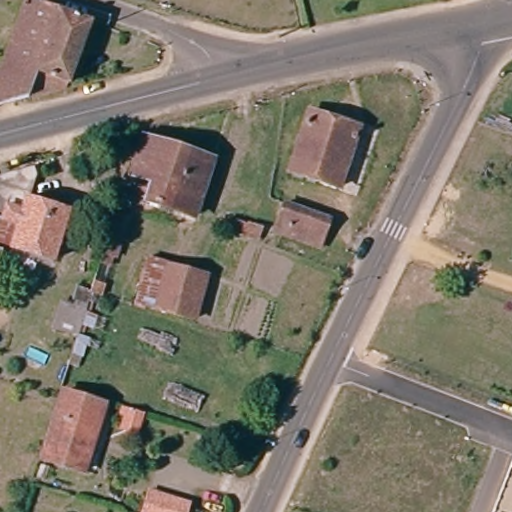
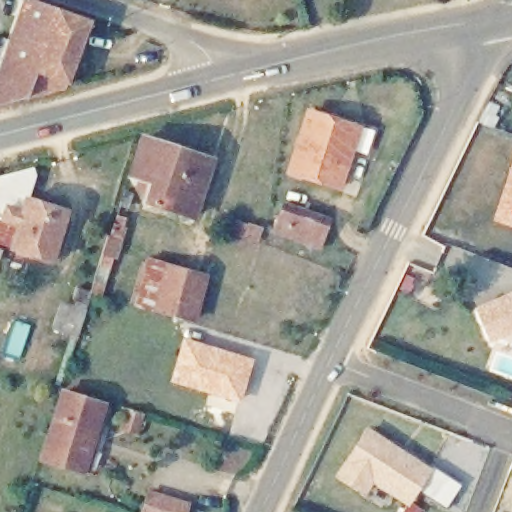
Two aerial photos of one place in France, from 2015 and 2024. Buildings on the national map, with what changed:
unchanged [(45,0),(89,16),(65,79),(60,78),(57,89),(0,104),(0,63),(23,0),(45,0)]
unchanged [(355,122),(332,187),(287,172),(311,109),(355,122)]
unchanged [(210,155),(192,211),(145,197),(148,182),(139,180),(141,170),(134,166),(147,135),(210,155)]
new [(512,228),(490,221),(512,157),(512,228)]
new [(18,247),(57,263),(9,250),(0,247),(0,176),(33,166),(37,175),(28,199),(34,201),(18,247)]
unchanged [(71,215),(57,263),(18,247),(34,201),(71,215)]
unchanged [(326,215),(315,245),(288,235),(290,230),(284,227),(286,220),(277,216),(285,202),(326,215)]
unchanged [(9,250),(0,274),(0,247),(9,250)]
unchanged [(197,273),(186,315),(145,301),(159,260),(197,273)]
unchanged [(58,306),(71,310),(77,283),(95,292),(90,312),(104,318),(101,330),(86,326),(82,336),(52,330),(58,306)]
new [(474,310),(512,293),(512,332),(489,345),(474,310)]
new [(182,336),(254,358),(241,403),(169,382),(182,336)]
unchanged [(87,473),(47,460),(68,393),(107,410),(87,473)]
unchanged [(145,412),(139,435),(118,430),(122,417),(117,415),(121,405),(145,412)]
new [(431,472),(409,508),(373,485),(365,498),(335,478),(367,428),(431,472)]
unchanged [(150,487),(194,501),(190,512),(143,512),(150,487)]

